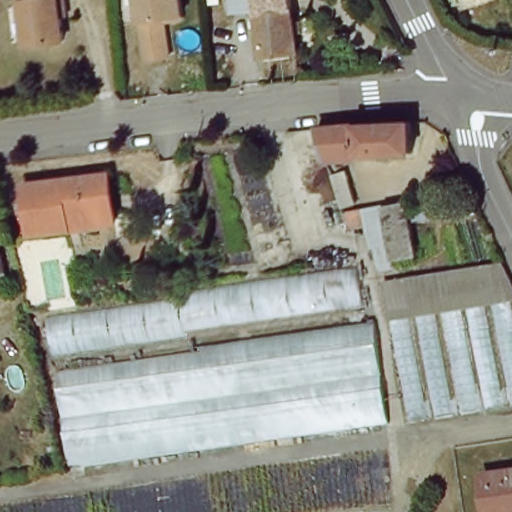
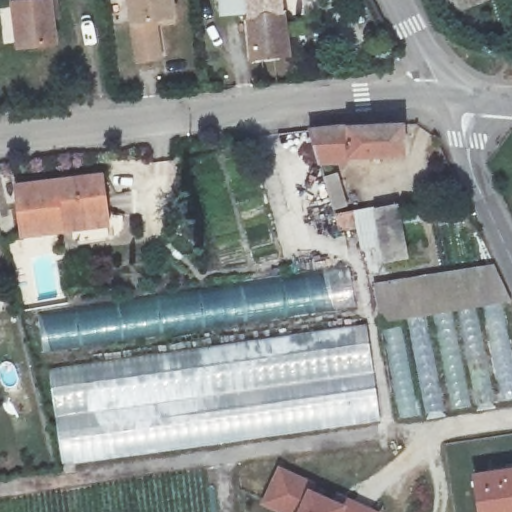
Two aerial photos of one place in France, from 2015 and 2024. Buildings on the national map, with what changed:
unchanged [(54,42),(17,46),(12,0),(49,0),(54,42)]
unchanged [(168,20),(152,22),(157,61),(135,63),(127,0),(169,0),(172,20),(168,20)]
unchanged [(219,0),(252,0),(253,12),(283,7),(286,32),(289,52),(253,57),(248,11),(221,13),(219,0)]
unchanged [(283,7),(253,12),(252,0),(282,0),(283,7)]
unchanged [(308,131),(400,127),(402,157),(317,160),(308,131)]
unchanged [(345,203),(337,173),(352,169),(363,200),(345,204),(345,203)]
unchanged [(20,233),(15,185),(100,173),(105,212),(64,216),(65,227),(20,233)]
unchanged [(420,256),(399,260),(395,242),(380,245),(375,246),(370,224),(352,227),(348,212),(366,209),(410,201),(420,256)]
unchanged [(512,360),(512,391),(400,408),(377,280),(493,262),(512,360)]
unchanged [(348,269),(356,312),(44,358),(35,311),(348,269)]
unchanged [(3,287),(0,288),(0,277),(3,287)]
unchanged [(50,373),(367,328),(380,421),(62,464),(50,373)]
new [(279,466),(318,482),(315,491),(335,499),(337,492),(382,512),(284,512),(263,502),(279,466)]
unchanged [(475,478),(512,474),(512,512),(480,512),(480,507),(475,478)]

